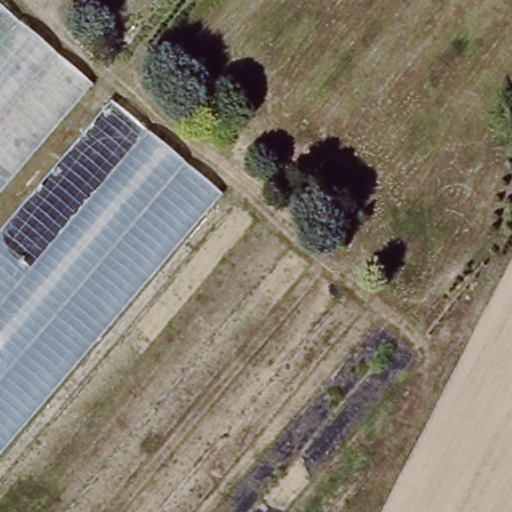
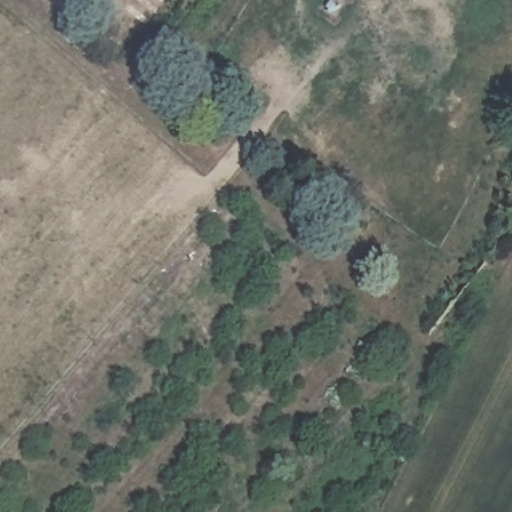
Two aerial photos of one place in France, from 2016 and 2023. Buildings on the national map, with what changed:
demolished [(0,124),(0,11),(58,55),(0,124)]
demolished [(92,83),(0,191),(0,124),(58,55),(92,83)]
demolished [(0,453),(0,228),(108,100),(222,193),(0,453)]

